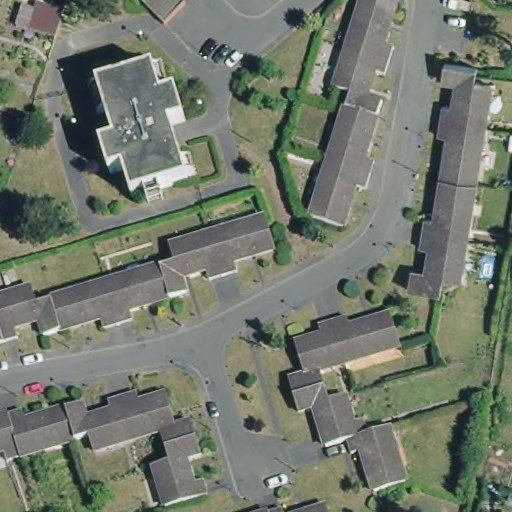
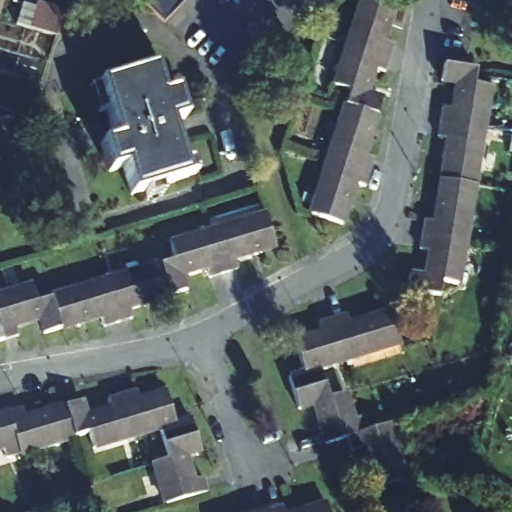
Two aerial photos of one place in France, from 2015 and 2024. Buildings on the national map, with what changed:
unchanged [(161,18),(143,0),(179,0),(161,18)]
unchanged [(341,40),(353,0),(388,0),(376,38),(386,42),(382,53),(341,40)]
unchanged [(53,36),(26,28),(35,1),(61,10),(53,36)]
unchanged [(338,100),(343,85),(328,80),(341,40),(382,53),(378,67),(368,63),(359,90),(374,95),(369,110),(338,100)]
unchanged [(438,118),(441,98),(452,99),(454,81),(439,79),(442,62),(475,67),(472,82),(489,85),(483,125),(438,118)]
unchanged [(109,169),(100,140),(113,136),(96,81),(152,63),(159,90),(174,86),(183,115),(168,119),(186,174),(129,191),(121,166),(109,169)]
unchanged [(320,157),(338,100),(369,110),(356,151),(366,155),(361,170),(320,157)]
unchanged [(483,125),(474,182),(440,176),(447,135),(435,133),(438,118),(483,125)]
unchanged [(361,170),(358,182),(348,179),(334,220),(304,209),(320,157),(361,170)]
unchanged [(474,182),(464,238),(420,231),(423,217),(433,218),(440,176),(474,182)]
unchanged [(211,224),(266,207),(276,239),(237,251),(239,261),(224,265),(211,224)]
unchanged [(224,265),(208,270),(205,261),(182,268),(187,284),(170,289),(160,257),(155,241),(211,224),(224,265)]
unchanged [(464,238),(457,280),(441,278),(437,294),(406,290),(408,271),(424,274),(428,249),(418,247),(420,231),(464,238)]
unchanged [(170,289),(132,301),(135,310),(119,315),(106,273),(160,257),(170,289)]
unchanged [(119,315),(105,320),(101,310),(63,322),(53,290),(106,273),(119,315)]
unchanged [(30,279),(36,295),(53,290),(63,322),(46,328),(40,312),(16,319),(19,329),(4,334),(0,335),(0,289),(30,279)]
unchanged [(334,316),(348,311),(351,321),(391,309),(402,342),(347,359),(334,316)]
unchanged [(347,359),(328,365),(333,380),(295,392),(291,377),(306,372),(296,339),(321,330),(319,320),(334,316),(347,359)]
unchanged [(333,380),(342,378),(348,394),(356,420),(365,417),(370,430),(349,436),(328,443),(316,404),(300,409),(295,392),(333,380)]
unchanged [(118,387),(133,382),(136,393),(161,385),(171,417),(186,413),(191,427),(159,437),(154,422),(130,429),(118,387)]
unchanged [(61,399),(76,394),(81,409),(107,401),(104,391),(118,387),(130,429),(91,440),(86,425),(70,430),(61,399)]
unchanged [(4,405),(19,400),(23,410),(61,399),(70,430),(17,446),(4,405)]
unchanged [(17,446),(2,451),(0,446),(0,406),(4,405),(17,446)]
unchanged [(370,430),(391,424),(408,477),(377,487),(364,446),(354,449),(349,436),(370,430)]
unchanged [(191,427),(196,444),(181,449),(188,474),(199,471),(203,485),(162,497),(150,458),(164,453),(159,437),(191,427)]
unchanged [(331,512),(291,512),(328,500),(331,512)]
unchanged [(284,505),(287,512),(271,512),(271,509),(284,505)]
unchanged [(262,512),(271,509),(271,512),(262,512)]

